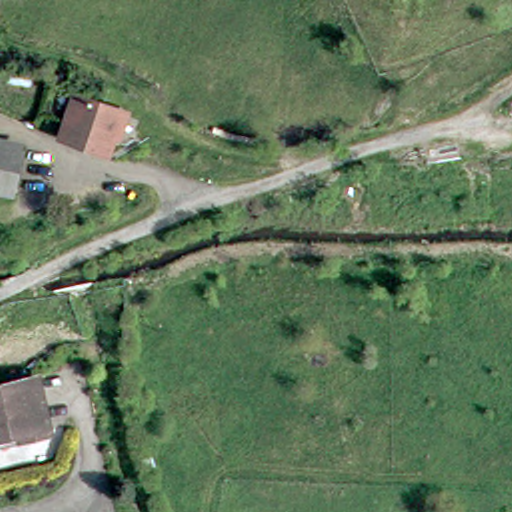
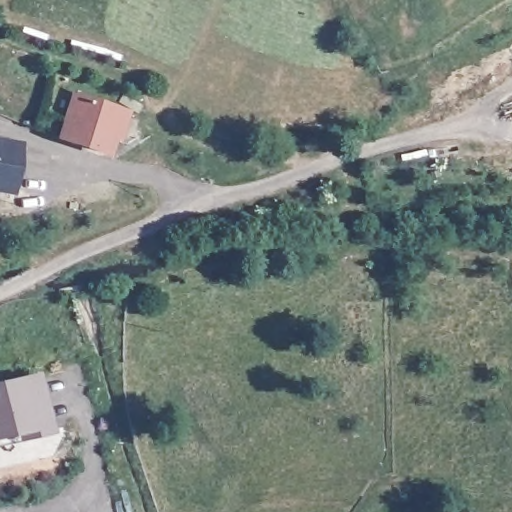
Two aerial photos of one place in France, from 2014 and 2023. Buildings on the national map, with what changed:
unchanged [(105,153),(55,136),(75,86),(123,104),(105,153)]
unchanged [(4,188),(0,187),(0,141),(14,144),(4,188)]
unchanged [(35,368),(47,422),(20,430),(19,420),(0,424),(0,375),(35,368)]

